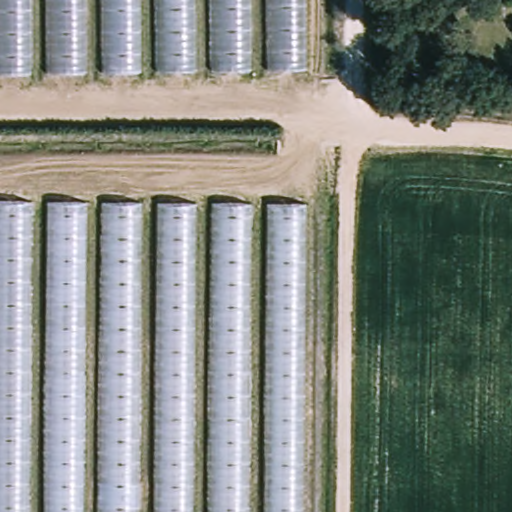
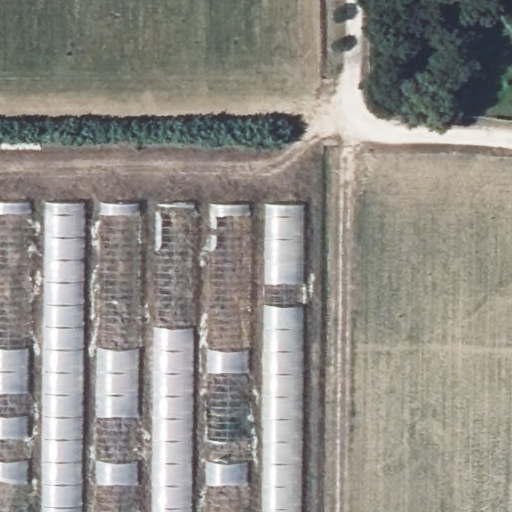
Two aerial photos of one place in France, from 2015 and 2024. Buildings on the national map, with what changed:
demolished [(0,76),(0,0),(309,0),(310,75),(0,76)]
unchanged [(301,512),(0,512),(0,201),(304,204),(301,512)]

